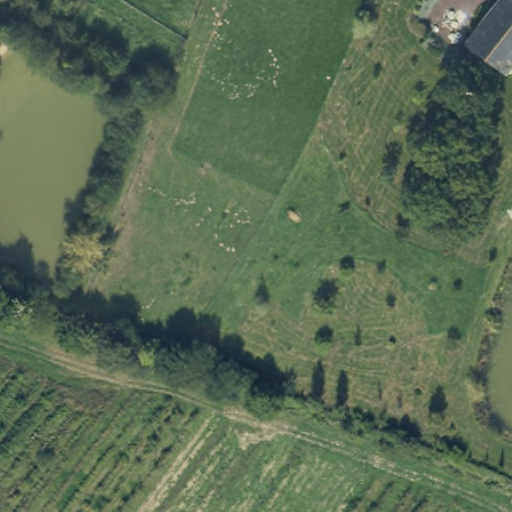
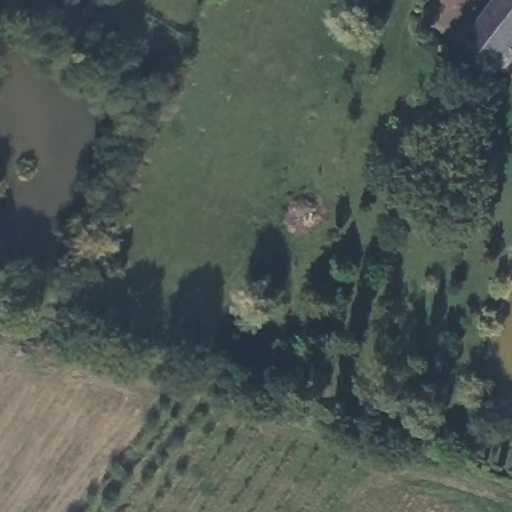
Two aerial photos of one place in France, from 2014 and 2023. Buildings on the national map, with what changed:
unchanged [(508,72),(491,60),(469,43),(501,0),(512,0),(512,68),(508,72)]

